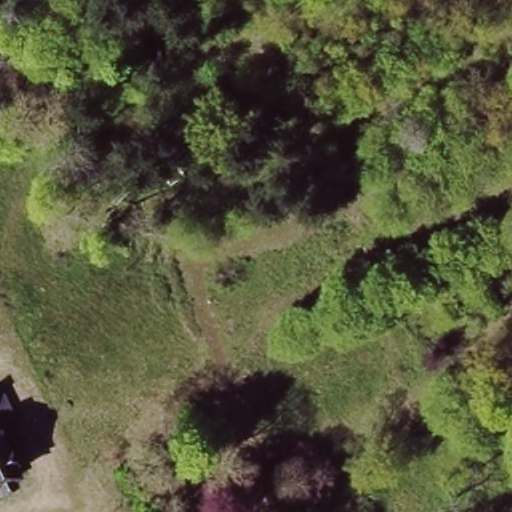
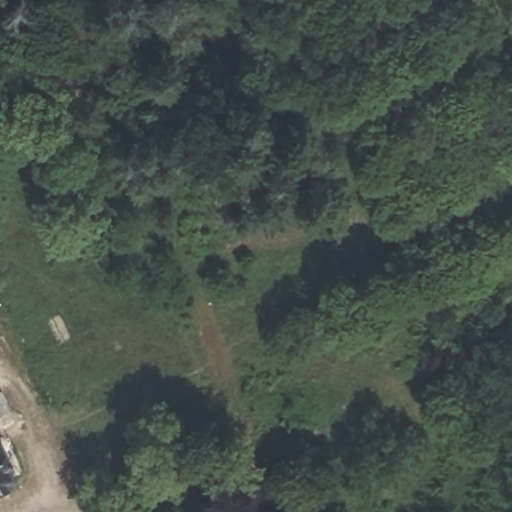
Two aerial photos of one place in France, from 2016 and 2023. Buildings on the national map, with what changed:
unchanged [(7,426),(25,468),(0,479),(0,429),(7,426)]

